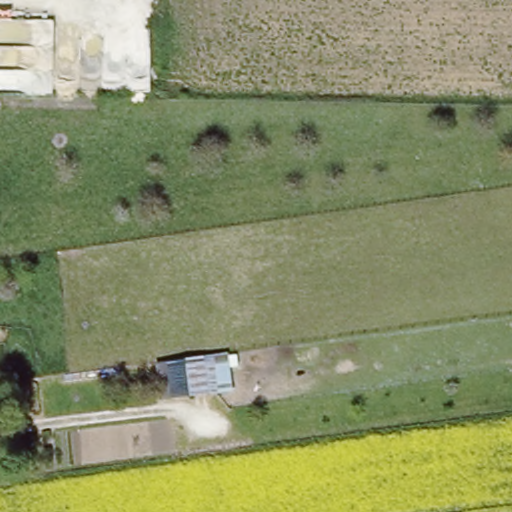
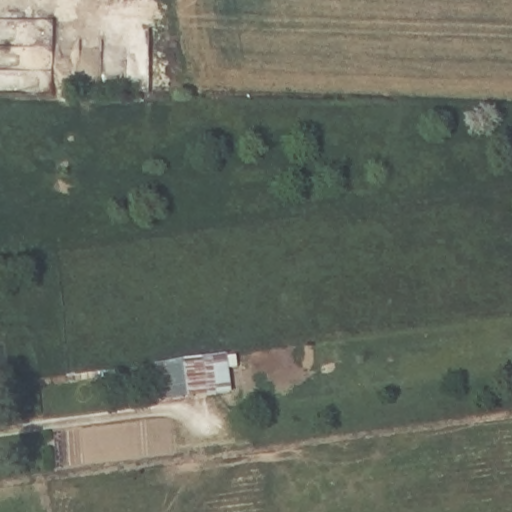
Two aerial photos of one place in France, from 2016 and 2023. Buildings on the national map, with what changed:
unchanged [(169,363),(227,354),(233,388),(172,396),(169,363)]

